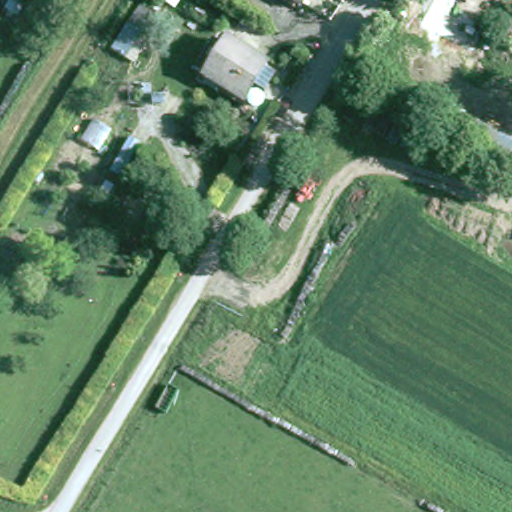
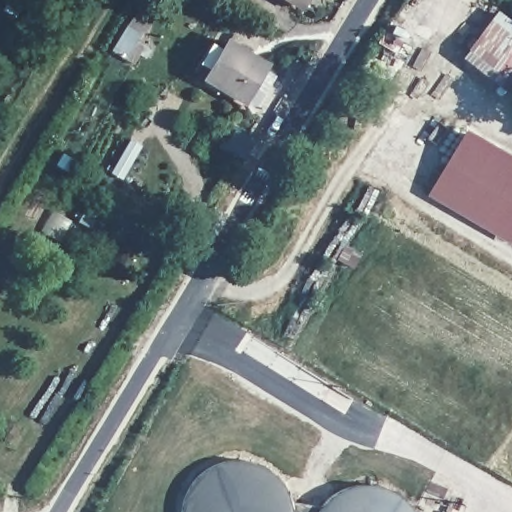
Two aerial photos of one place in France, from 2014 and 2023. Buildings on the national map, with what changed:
unchanged [(293,0),(305,0),(302,6),(293,0)]
new [(512,21),(512,93),(462,56),(498,10),(512,21)]
unchanged [(261,91),(251,85),(241,101),(203,78),(204,76),(196,71),(212,45),(220,50),(225,41),(264,64),(261,68),(271,75),(261,91)]
new [(512,154),(512,241),(512,242),(429,193),(466,128),(512,154)]

